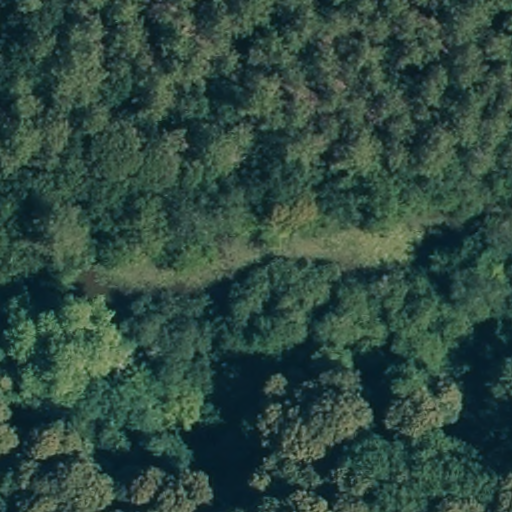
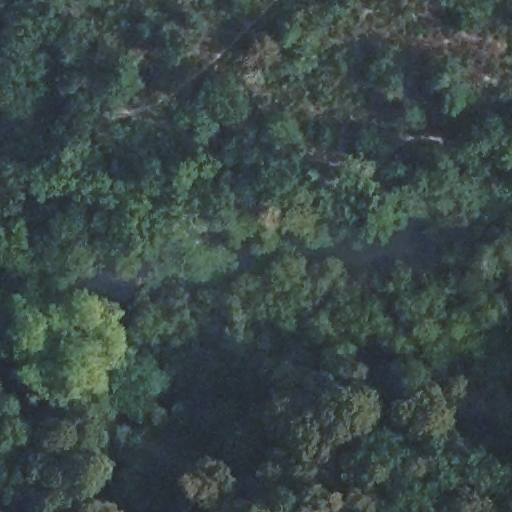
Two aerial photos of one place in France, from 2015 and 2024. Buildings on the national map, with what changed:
[]

